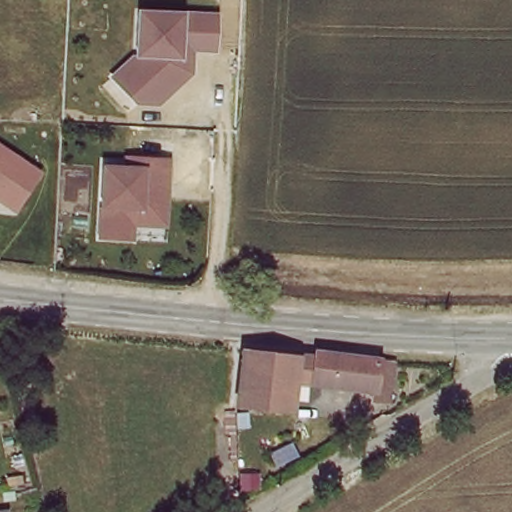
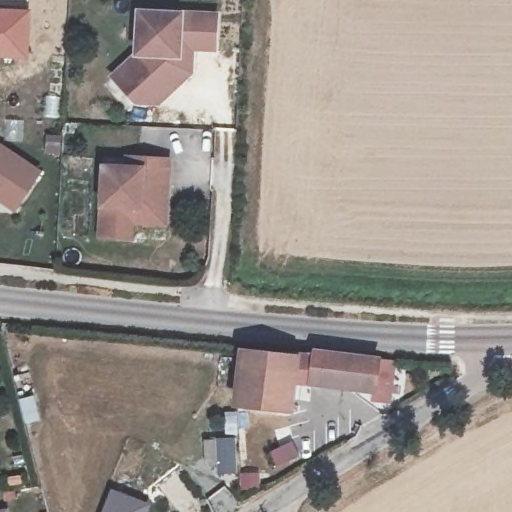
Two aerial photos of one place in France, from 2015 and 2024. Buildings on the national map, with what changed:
unchanged [(140,92),(128,102),(105,77),(128,55),(130,11),(207,12),(206,47),(184,47),(183,71),(172,82),(150,103),(140,92)]
new [(0,55),(0,12),(28,13),(25,57),(0,55)]
unchanged [(41,172),(15,214),(0,203),(0,142),(41,172)]
unchanged [(135,220),(126,242),(94,242),(95,171),(117,171),(117,162),(153,162),(160,162),(160,199),(160,220),(135,220)]
unchanged [(316,362),(317,350),(353,353),(382,356),(377,387),(290,385),(285,415),(245,412),(247,358),(316,362)]
new [(111,490),(150,505),(147,512),(103,512),(111,490)]

